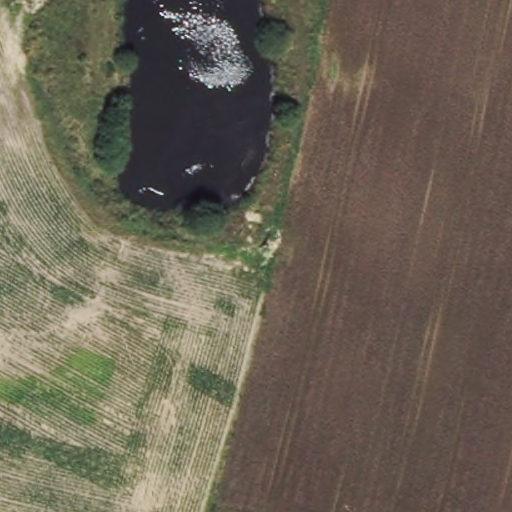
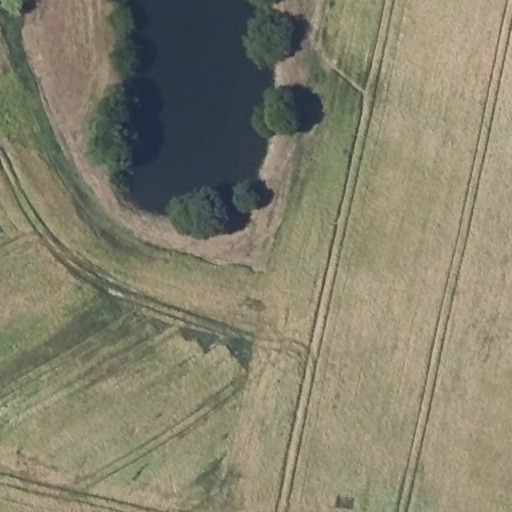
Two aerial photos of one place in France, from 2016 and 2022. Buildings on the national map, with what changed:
[]

